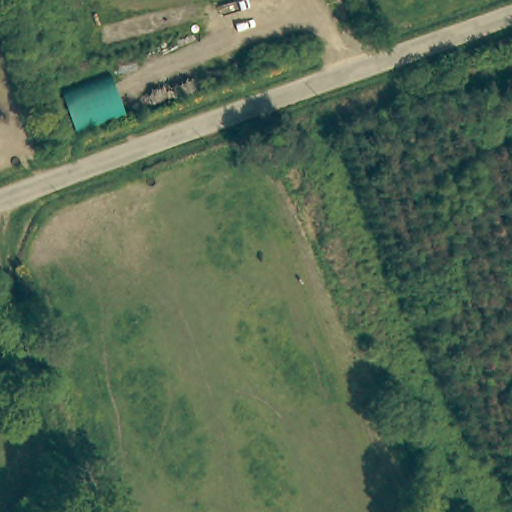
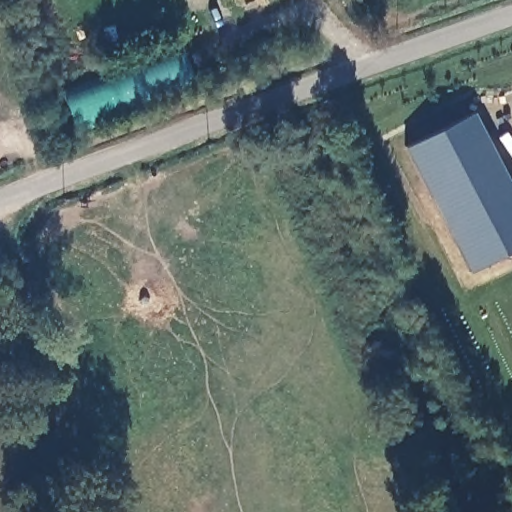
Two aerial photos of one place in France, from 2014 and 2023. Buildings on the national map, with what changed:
new [(195,84),(76,130),(62,94),(182,49),(195,84)]
new [(474,112),(512,188),(512,251),(469,272),(404,148),(474,112)]

